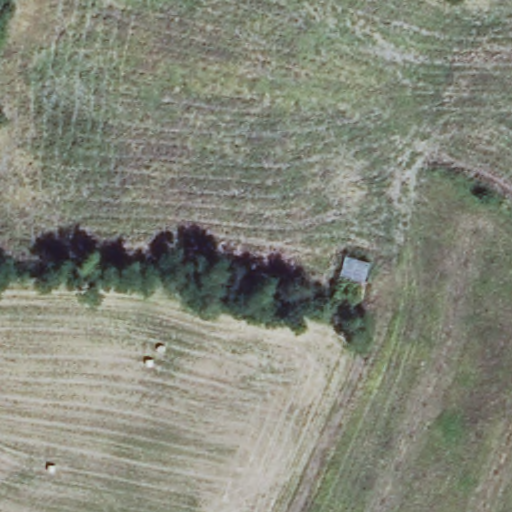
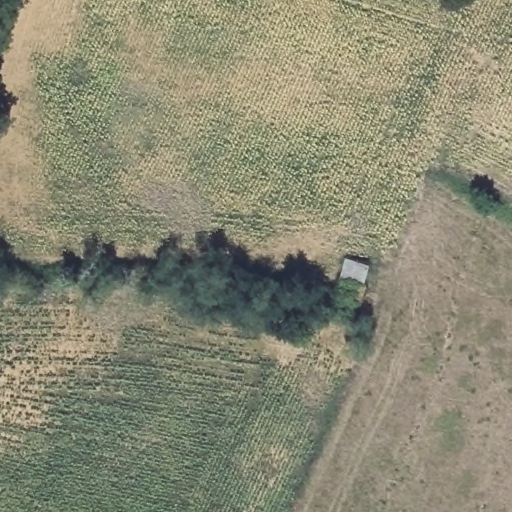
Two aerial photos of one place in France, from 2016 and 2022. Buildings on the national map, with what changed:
unchanged [(333,303),(342,255),(367,261),(361,308),(333,303)]

